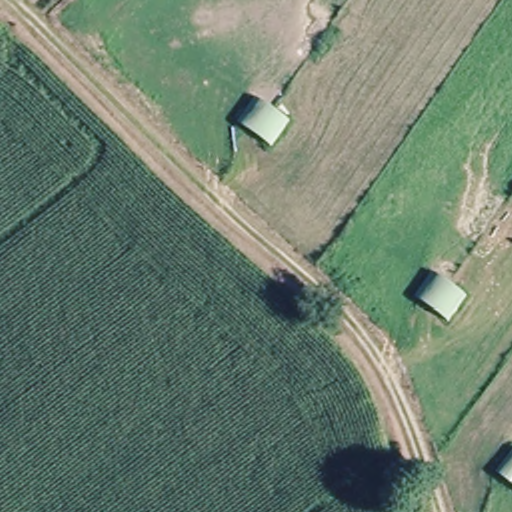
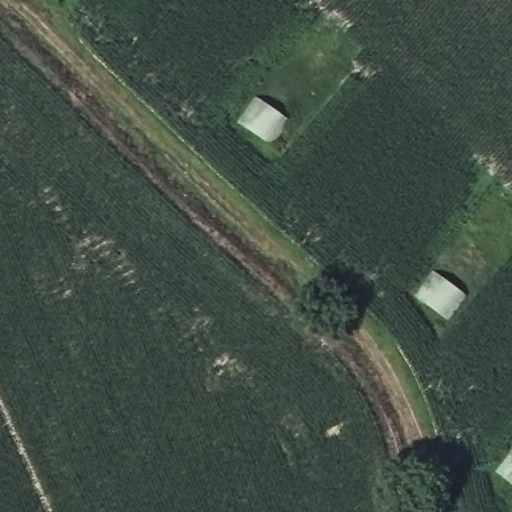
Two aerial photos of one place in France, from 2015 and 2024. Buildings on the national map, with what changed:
unchanged [(241,123),(258,98),(292,117),(273,144),(241,123)]
unchanged [(419,297),(435,272),(470,294),(452,322),(419,297)]
unchanged [(512,450),(512,485),(495,474),(512,450)]

